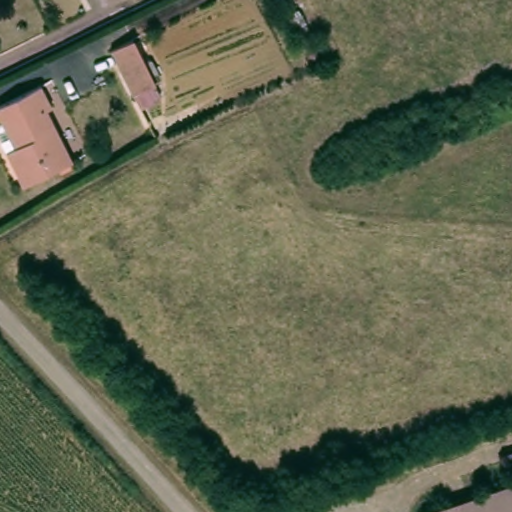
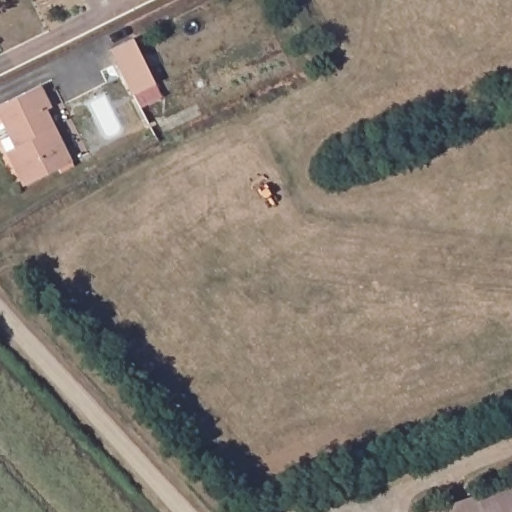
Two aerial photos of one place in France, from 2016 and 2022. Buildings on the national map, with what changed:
unchanged [(116,49),(137,37),(144,49),(160,81),(138,93),(120,58),(116,49)]
unchanged [(45,111),(71,163),(24,187),(6,153),(15,149),(5,128),(0,119),(0,107),(41,86),(47,98),(51,108),(45,111)]
unchanged [(512,482),(512,512),(427,512),(512,482)]

